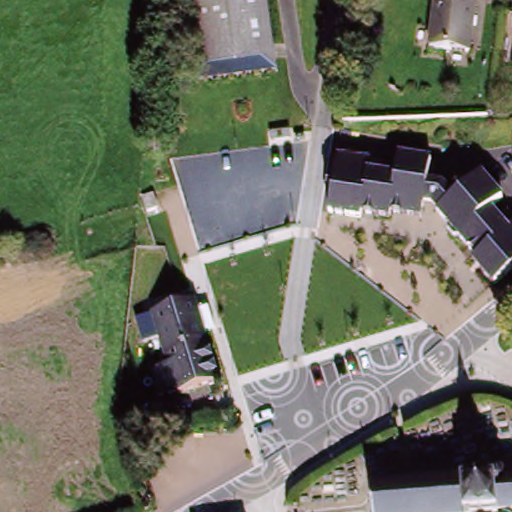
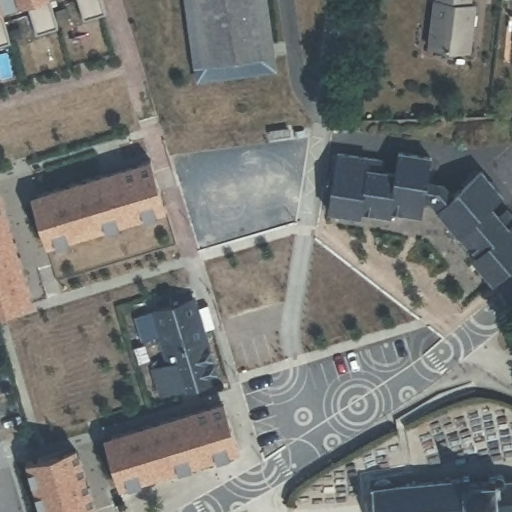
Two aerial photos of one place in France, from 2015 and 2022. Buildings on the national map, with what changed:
new [(57,27),(35,33),(27,4),(19,7),(1,12),(10,41),(0,44),(0,0),(50,0),(57,27)]
new [(105,13),(82,19),(77,0),(101,0),(105,13)]
unchanged [(261,41),(263,59),(217,65),(200,67),(199,67),(197,58),(195,41),(188,0),(255,0),(261,41)]
unchanged [(202,81),(200,72),(199,67),(200,67),(217,65),(263,59),(261,41),(255,0),(268,0),(273,38),(276,57),(277,71),(202,81)]
unchanged [(471,4),(477,4),(471,54),(430,50),(436,0),(471,0),(471,4)]
new [(135,160),(144,157),(154,188),(134,194),(139,210),(159,204),(160,207),(127,217),(41,246),(36,229),(25,196),(32,193),(135,160)]
unchanged [(494,198),(486,205),(498,219),(508,211),(512,215),(512,261),(489,281),(472,262),(476,258),(456,235),(455,236),(451,235),(445,228),(445,224),(446,224),(434,211),(428,205),(422,204),(421,209),(419,221),(392,218),(391,224),(361,221),(360,225),(331,222),(340,163),(378,168),(377,177),(397,180),(401,162),(427,166),(424,186),(436,188),(447,198),(472,172),(494,198)]
demolished [(148,188),(137,192),(134,179),(144,176),(148,188)]
new [(27,297),(0,306),(0,206),(25,291),(27,297)]
demolished [(0,304),(0,276),(26,268),(34,294),(0,304)]
unchanged [(219,381),(178,395),(177,392),(160,397),(159,398),(150,372),(150,370),(167,364),(150,312),(150,311),(191,298),(194,307),(197,306),(200,307),(203,308),(206,310),(208,312),(210,315),(210,318),(210,322),(209,325),(207,327),(205,330),(202,331),(219,381)]
new [(109,470),(99,437),(106,435),(107,434),(220,401),(221,403),(232,441),(235,452),(221,456),(215,457),(117,486),(114,487),(109,470)]
new [(73,454),(90,512),(37,512),(22,462),(39,457),(71,447),(73,454)]
unchanged [(377,512),(375,489),(387,488),(393,493),(462,486),(462,482),(476,480),(477,492),(488,491),(488,481),(512,479),(512,512),(377,512)]

